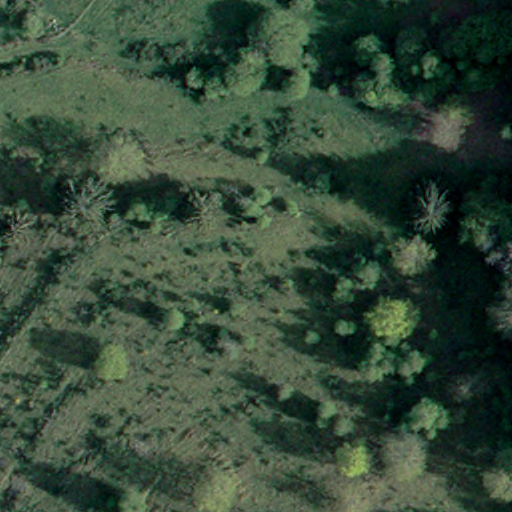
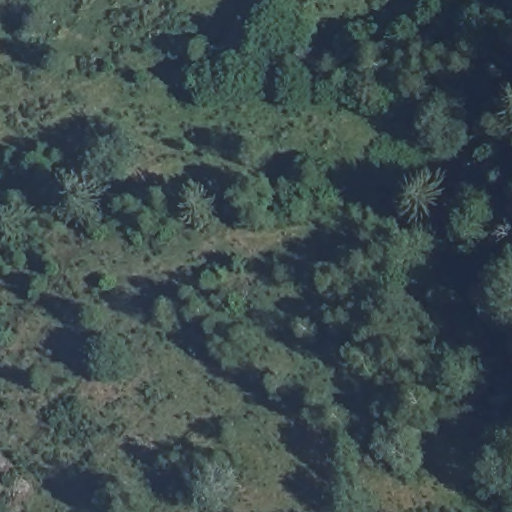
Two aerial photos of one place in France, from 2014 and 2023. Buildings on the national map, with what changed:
[]

